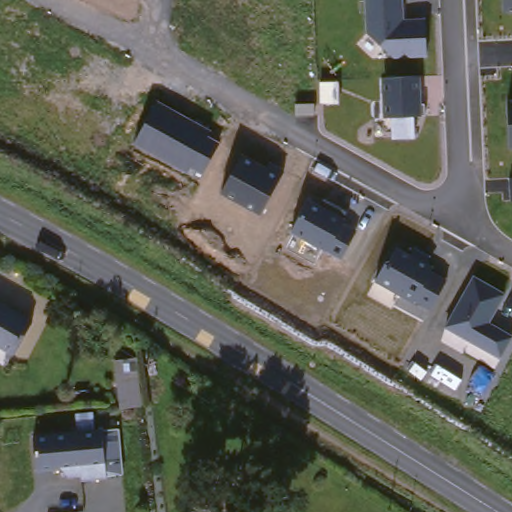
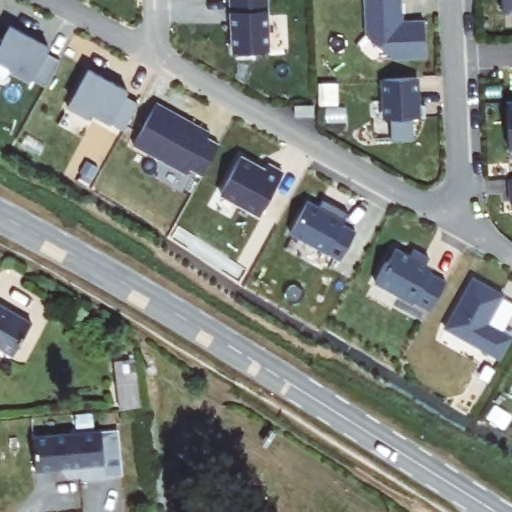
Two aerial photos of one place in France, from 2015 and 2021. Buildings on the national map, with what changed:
new [(231,51),(228,0),(264,0),(266,49),(231,51)]
unchanged [(425,18),(428,58),(391,59),(366,34),(365,0),(402,0),(403,18),(425,18)]
unchanged [(504,11),(503,0),(512,0),(512,11),(504,11)]
new [(10,25),(49,46),(46,51),(60,59),(45,85),(31,78),(29,83),(9,72),(12,68),(0,61),(0,39),(2,40),(10,25)]
new [(89,68),(127,89),(125,94),(139,103),(124,129),(92,111),(88,118),(68,106),(89,68)]
unchanged [(420,116),(413,116),(414,138),(391,139),(390,118),(383,119),(381,79),(419,77),(420,116)]
unchanged [(203,173),(191,167),(187,173),(133,144),(156,101),(211,132),(208,139),(219,145),(203,173)]
unchanged [(509,149),(506,101),(512,101),(512,148),(509,149)]
unchanged [(261,215),(220,194),(241,154),(281,176),(261,215)]
unchanged [(511,201),(510,179),(512,179),(512,200),(511,201)]
unchanged [(341,260),(291,233),(308,203),(315,208),(319,199),(348,214),(343,224),(356,232),(341,260)]
unchanged [(429,312),(376,284),(395,249),(405,255),(410,247),(434,259),(427,270),(446,282),(429,312)]
unchanged [(500,359),(444,329),(471,278),(504,295),(490,322),(511,336),(500,359)]
unchanged [(0,300),(31,318),(13,351),(0,344),(0,300)]
unchanged [(133,351),(143,410),(117,413),(111,355),(133,351)]
unchanged [(108,432),(108,433),(124,431),(129,474),(113,475),(113,476),(88,479),(87,474),(76,476),(68,469),(43,472),(39,439),(108,432)]

